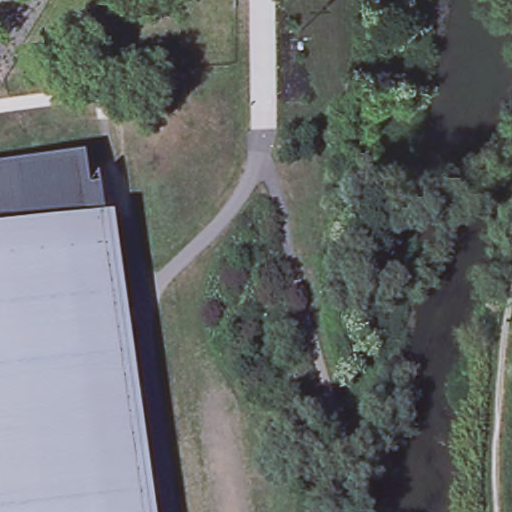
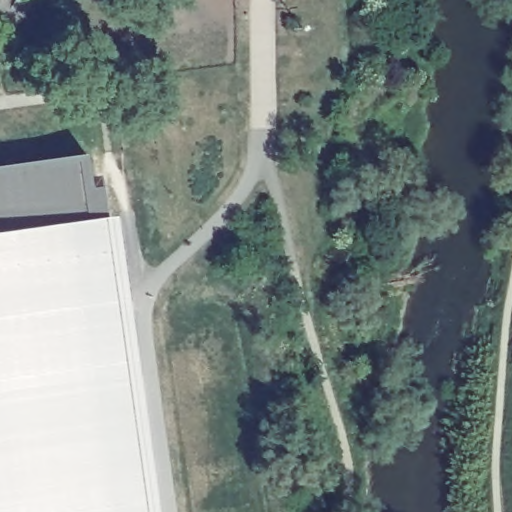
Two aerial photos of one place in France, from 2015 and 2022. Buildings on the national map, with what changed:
unchanged [(136,512),(0,512),(0,174),(85,163),(136,512)]

